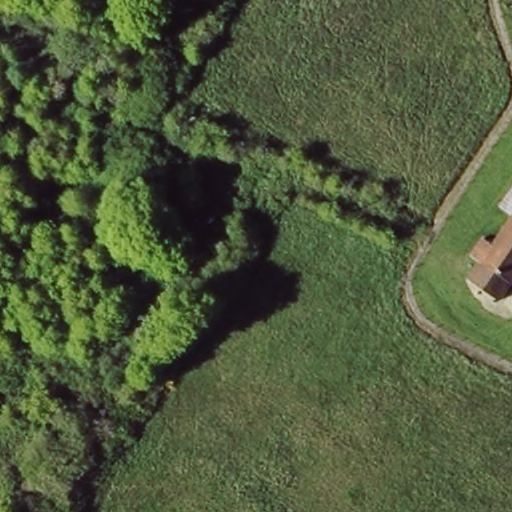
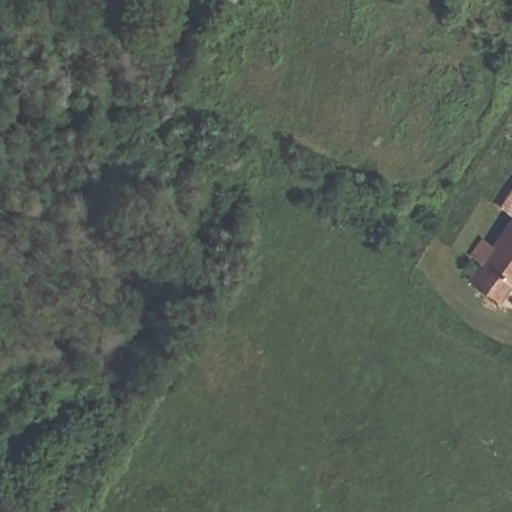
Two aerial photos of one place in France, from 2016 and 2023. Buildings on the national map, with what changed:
unchanged [(505,295),(500,303),(470,285),(481,267),(471,261),(481,245),(494,253),(503,237),(512,224),(512,292),(508,298),(505,295)]

